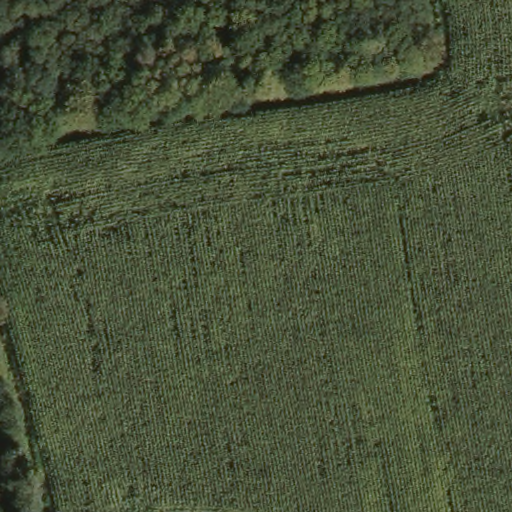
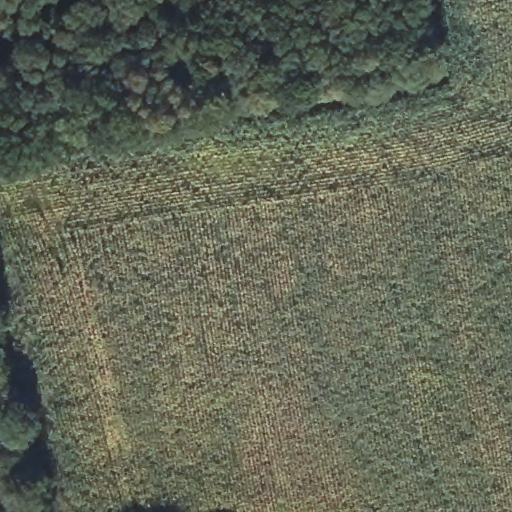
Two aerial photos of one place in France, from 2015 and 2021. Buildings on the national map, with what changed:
[]

